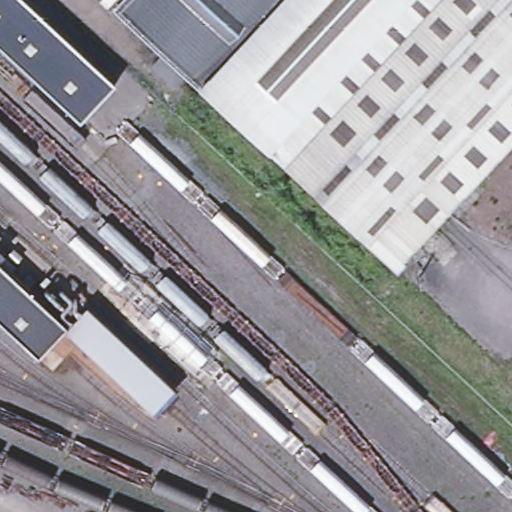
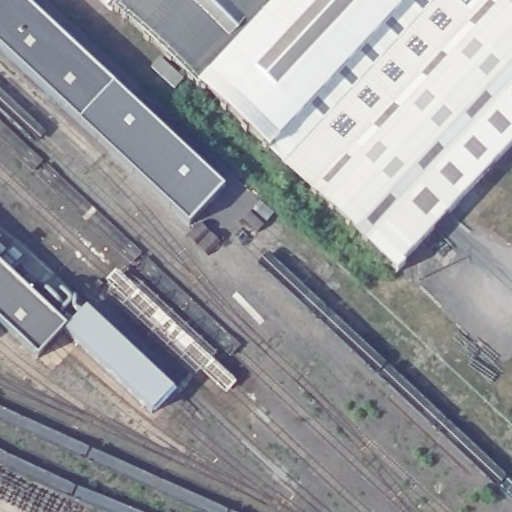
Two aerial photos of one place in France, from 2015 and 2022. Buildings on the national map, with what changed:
unchanged [(83,124),(0,47),(0,0),(24,0),(117,87),(83,124)]
unchanged [(115,9),(105,0),(128,0),(119,8),(115,9)]
unchanged [(119,8),(128,0),(512,0),(512,148),(399,270),(119,8)]
unchanged [(186,79),(176,89),(153,66),(162,56),(186,79)]
new [(117,87),(228,190),(193,227),(83,124),(117,87)]
unchanged [(61,330),(59,333),(33,361),(0,330),(0,272),(61,330)]
unchanged [(61,330),(81,310),(168,392),(146,415),(59,333),(61,330)]

